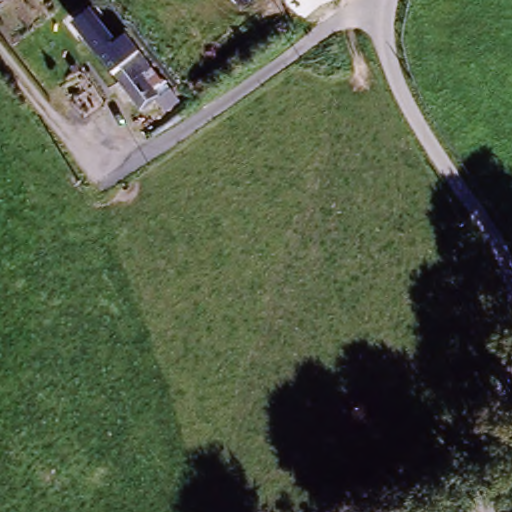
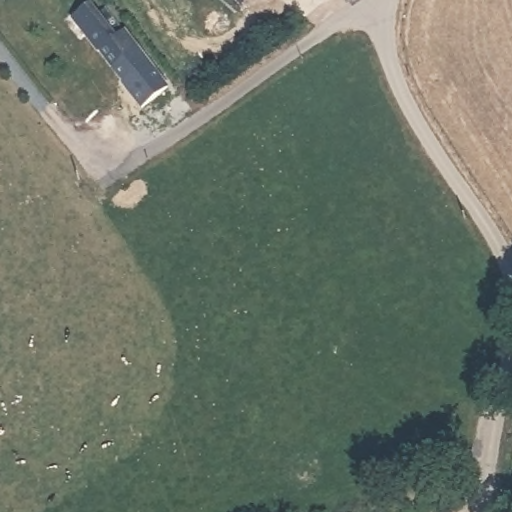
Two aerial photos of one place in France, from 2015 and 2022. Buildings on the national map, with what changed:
unchanged [(66,15),(84,2),(109,32),(116,26),(156,77),(130,96),(66,15)]

